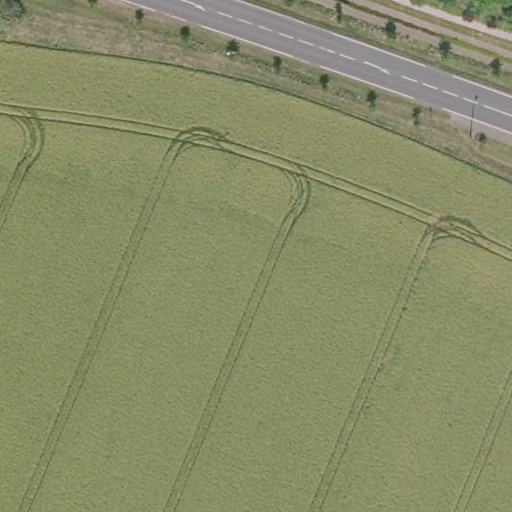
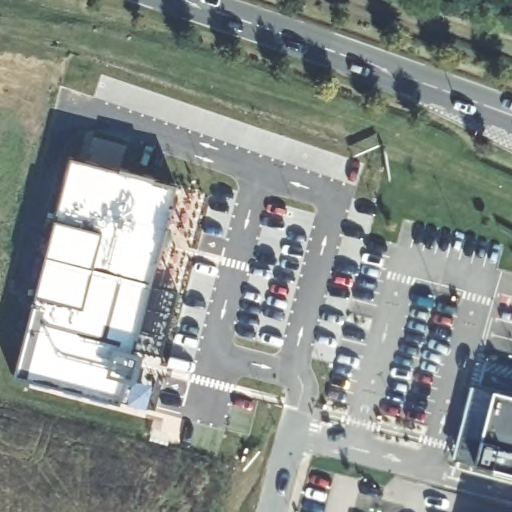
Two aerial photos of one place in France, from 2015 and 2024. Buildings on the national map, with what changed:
new [(70,157),(175,184),(117,402),(14,373),(70,157)]
unchanged [(476,387),(512,396),(512,474),(457,460),(476,387)]

